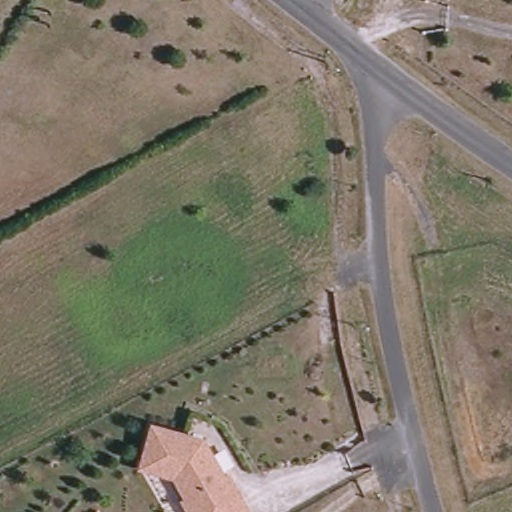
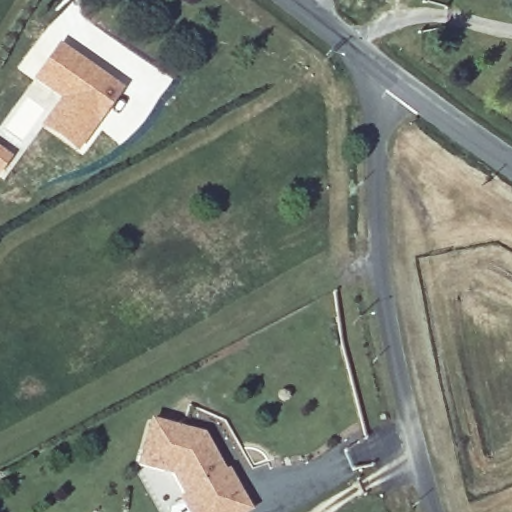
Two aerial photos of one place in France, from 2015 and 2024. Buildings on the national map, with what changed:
new [(59,43),(123,90),(77,154),(40,127),(59,99),(33,79),(59,43)]
new [(11,158),(0,173),(0,149),(11,158)]
unchanged [(184,494),(187,492),(175,473),(140,464),(152,422),(203,436),(224,471),(227,469),(250,509),(244,512),(193,512),(184,494)]

